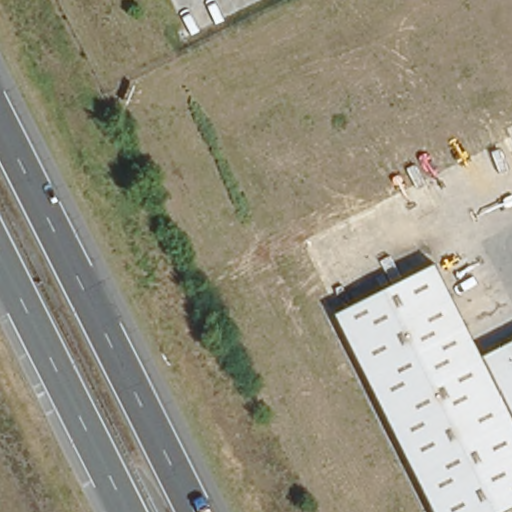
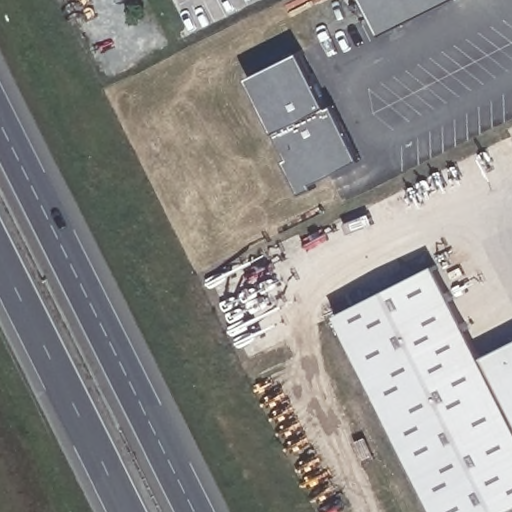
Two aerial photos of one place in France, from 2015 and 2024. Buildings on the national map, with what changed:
new [(384,35),(366,0),(452,0),(384,35)]
new [(335,103),(362,158),(313,182),(315,188),(303,194),(285,160),(291,157),(277,132),(250,77),(303,51),(330,105),(335,103)]
unchanged [(485,353),(512,339),(512,506),(501,512),(440,512),(335,312),(437,261),(485,353)]

